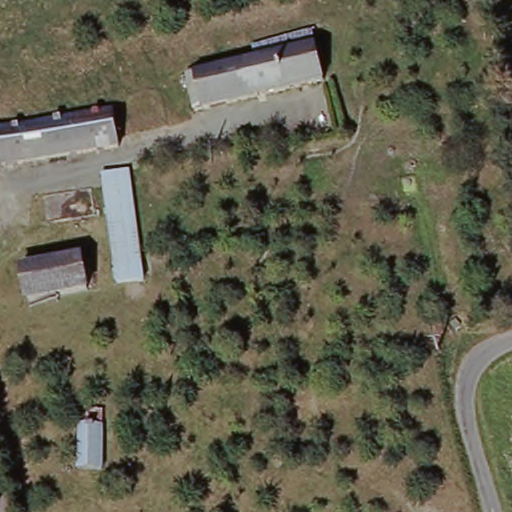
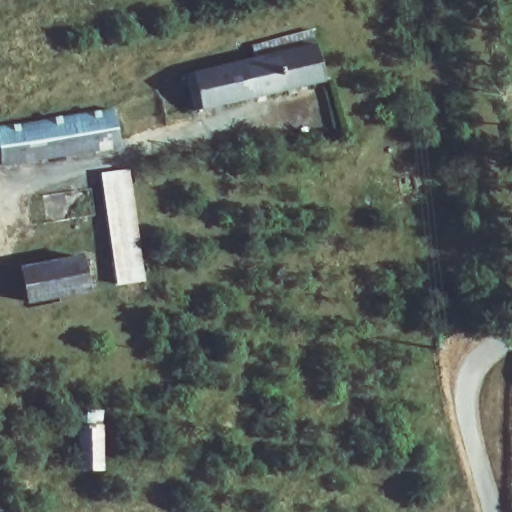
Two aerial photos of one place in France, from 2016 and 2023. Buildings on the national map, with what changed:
unchanged [(258,57),(256,46),(280,40),(318,31),(321,43),(330,81),(199,111),(190,74),(258,57)]
unchanged [(117,110),(122,148),(7,166),(0,129),(117,110)]
unchanged [(132,170),(147,281),(120,285),(104,174),(132,170)]
unchanged [(79,253),(86,286),(28,297),(22,263),(79,253)]
unchanged [(82,425),(90,425),(90,409),(108,410),(105,472),(82,470),(82,425)]

